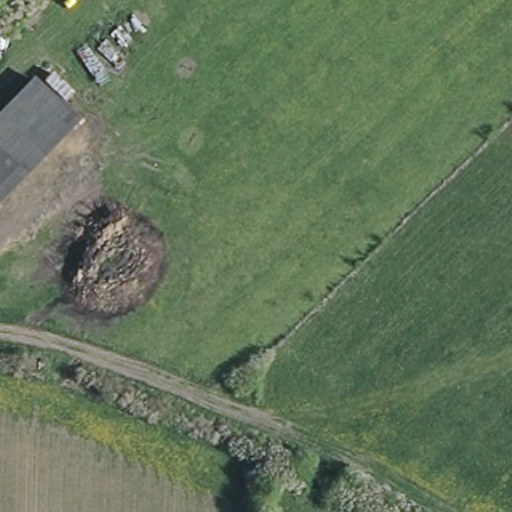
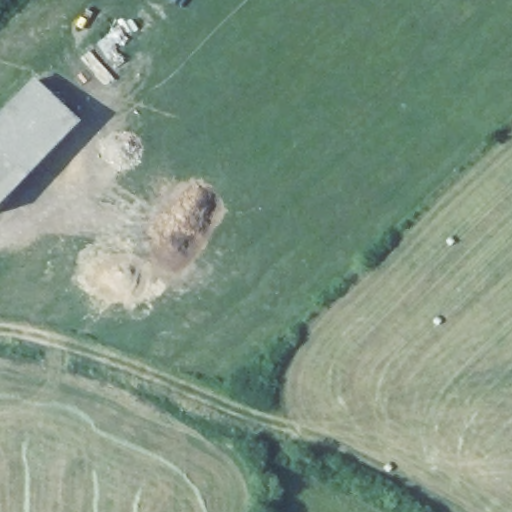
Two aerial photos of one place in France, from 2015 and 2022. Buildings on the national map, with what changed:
unchanged [(76,121),(0,203),(0,111),(32,78),(76,121)]

